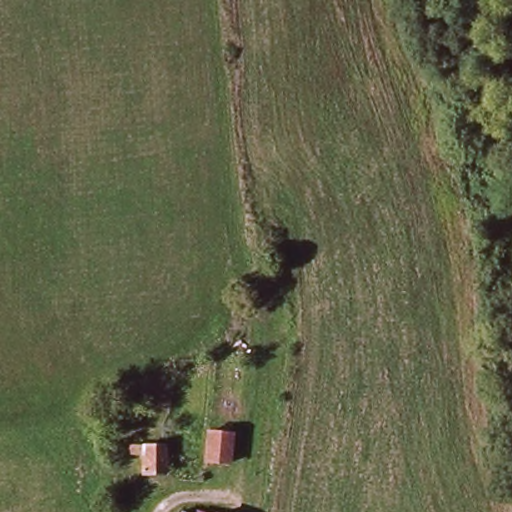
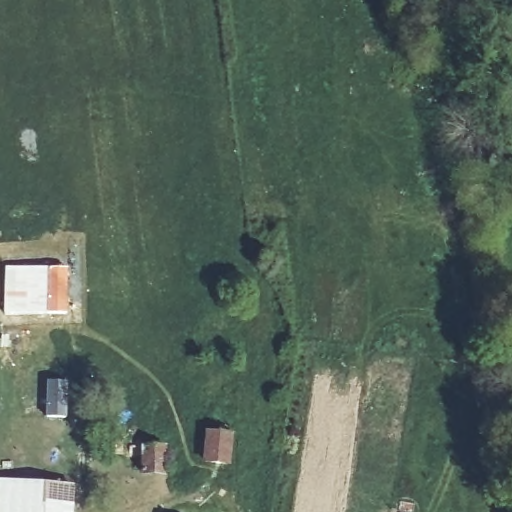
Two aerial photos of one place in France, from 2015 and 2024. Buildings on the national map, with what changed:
new [(3,267),(68,268),(68,315),(2,316),(3,267)]
new [(45,380),(69,381),(67,419),(45,418),(45,380)]
unchanged [(227,436),(223,464),(200,464),(204,434),(227,436)]
unchanged [(163,469),(139,469),(140,452),(128,451),(130,444),(164,445),(163,469)]
new [(74,512),(0,512),(0,478),(75,485),(74,512)]

